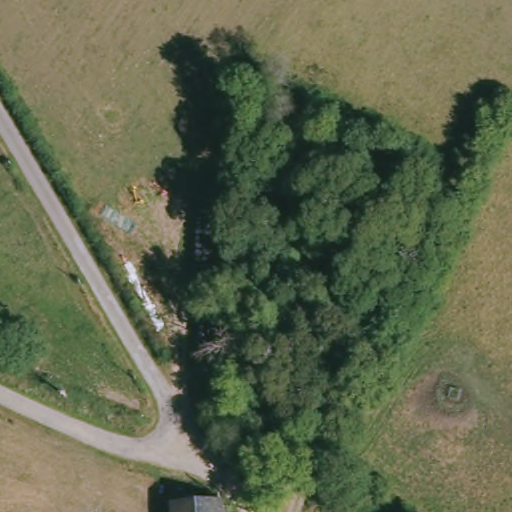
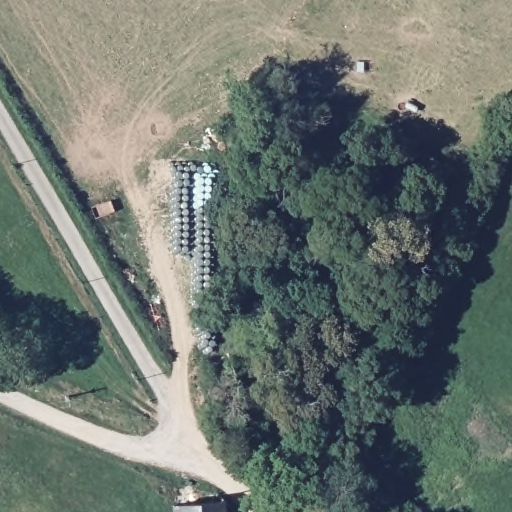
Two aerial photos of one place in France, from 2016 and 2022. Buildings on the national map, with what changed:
unchanged [(178,505),(227,499),(229,512),(179,512),(178,505)]

